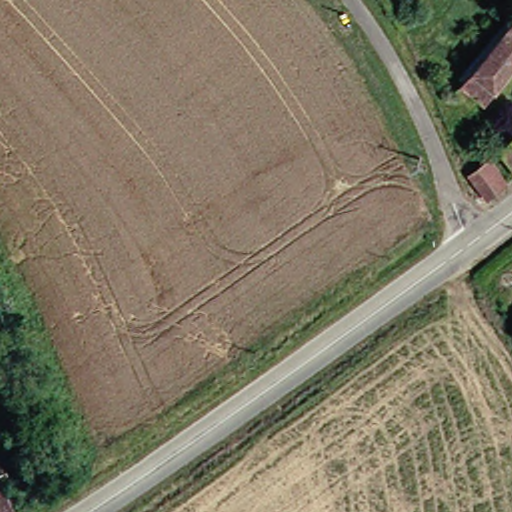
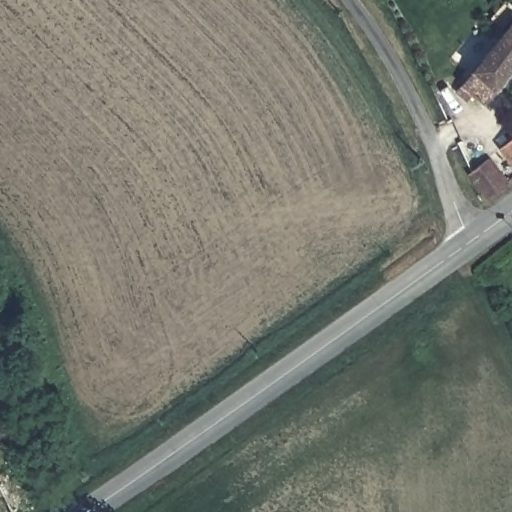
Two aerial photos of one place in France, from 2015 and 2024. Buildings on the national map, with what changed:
unchanged [(494,104),(466,91),(512,37),(512,83),(494,104)]
unchanged [(512,143),(512,155),(507,148),(512,143)]
unchanged [(490,200),(473,171),(504,150),(512,162),(512,185),(490,200)]
unchanged [(23,511),(22,512),(0,512),(0,474),(5,472),(23,511)]

